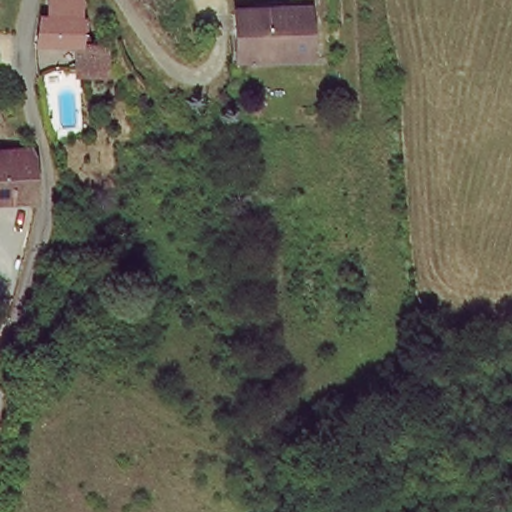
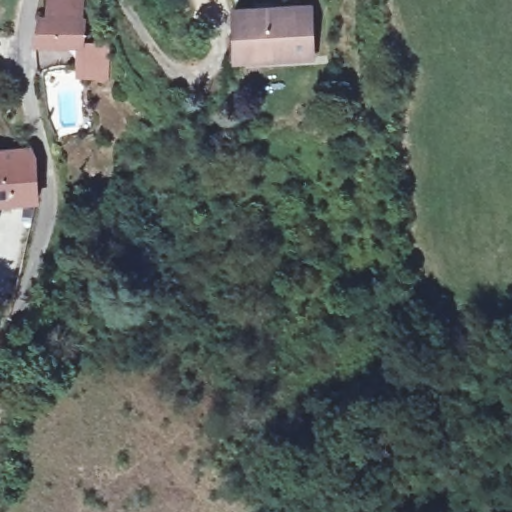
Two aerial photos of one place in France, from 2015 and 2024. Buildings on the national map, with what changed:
unchanged [(82,46),(38,47),(40,36),(45,17),(49,4),(50,0),(81,0),(81,6),(82,46)]
unchanged [(241,41),(238,6),(312,1),(317,52),(258,57),(242,57),(241,41)]
unchanged [(86,69),(82,46),(105,43),(107,67),(86,69)]
unchanged [(39,172),(40,186),(40,190),(0,192),(0,143),(35,140),(39,172)]

